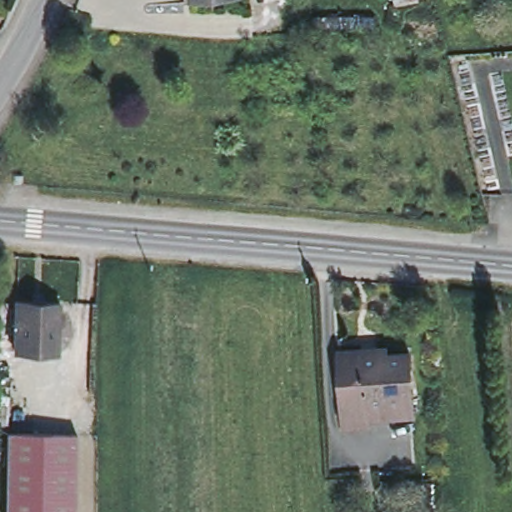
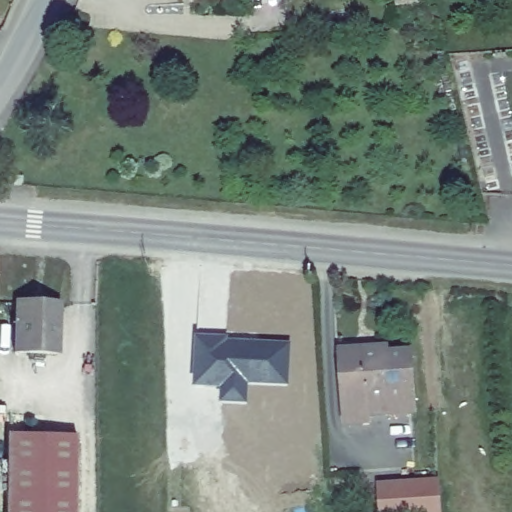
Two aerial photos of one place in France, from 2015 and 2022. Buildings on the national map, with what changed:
unchanged [(192,0),(201,0),(192,1),(192,0)]
unchanged [(58,303),(57,355),(15,353),(15,301),(58,303)]
new [(228,335),(228,338),(290,341),(288,385),(248,382),(247,402),(220,400),(221,386),(193,384),(195,333),(228,335)]
unchanged [(387,351),(387,356),(410,355),(412,389),(410,389),(410,412),(386,414),(386,411),(367,412),(367,422),(345,423),(344,402),(342,401),(341,387),(342,385),(340,354),(387,351)]
unchanged [(4,435),(74,437),(72,512),(2,512),(4,435)]
new [(444,476),(446,512),(380,512),(377,481),(444,476)]

